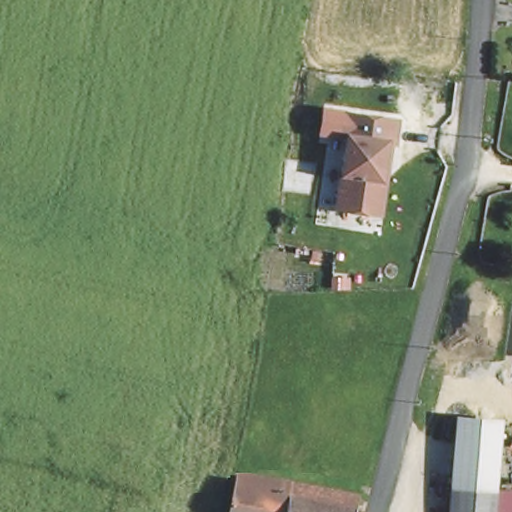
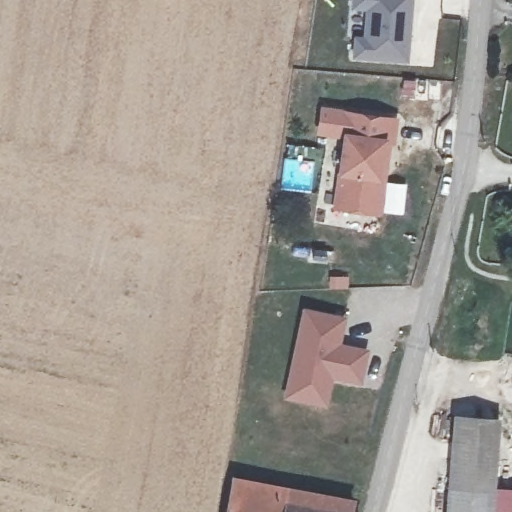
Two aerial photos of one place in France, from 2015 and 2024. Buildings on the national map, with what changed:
new [(407,61),(351,57),(352,35),(361,35),(363,10),(350,8),(351,0),(412,0),(407,61)]
unchanged [(370,211),(342,209),(347,137),(342,137),(345,114),(396,117),(395,140),(391,139),(386,212),(370,211)]
new [(332,379),(326,408),(283,398),(302,307),(345,316),(340,342),(366,349),(360,384),(332,379)]
unchanged [(453,485),(455,415),(502,418),(496,490),(453,485)]
unchanged [(348,499),(349,512),(230,512),(238,476),(348,499)]
unchanged [(494,512),(451,512),(453,485),(496,490),(494,512)]
unchanged [(512,491),(512,512),(494,512),(496,490),(512,491)]

